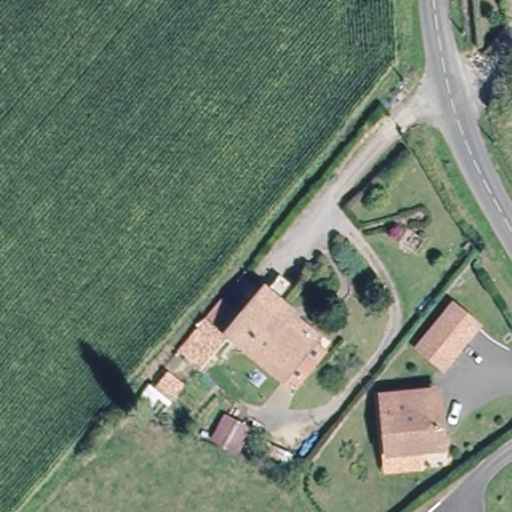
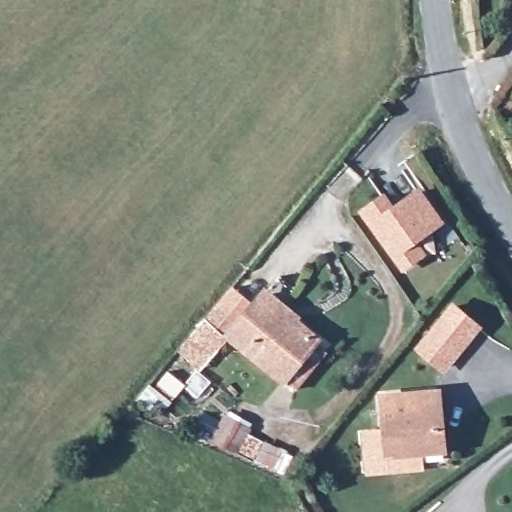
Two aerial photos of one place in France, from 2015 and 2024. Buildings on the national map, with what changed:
new [(393,204),(420,186),(445,221),(418,242),(427,253),(402,272),(358,211),(386,191),(393,204)]
unchanged [(292,386),(281,377),(278,380),(225,334),(256,297),(271,280),(287,293),(272,312),(308,342),(306,346),(317,355),(292,386)]
unchanged [(457,303),(481,323),(460,348),(445,365),(422,346),(436,328),(457,303)]
unchanged [(441,392),(446,450),(390,455),(385,397),(441,392)]

